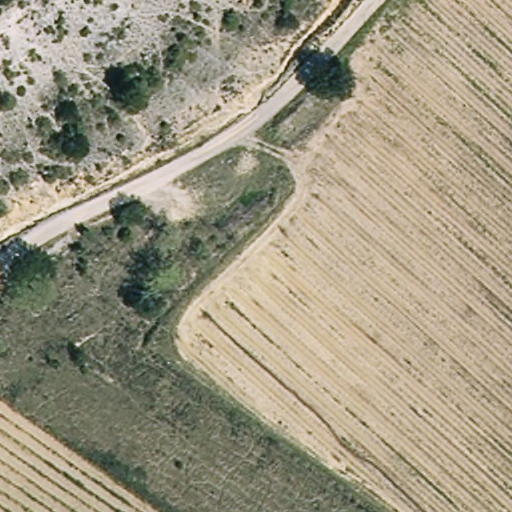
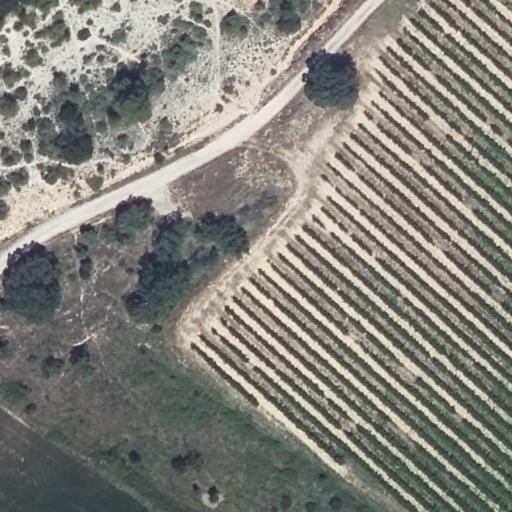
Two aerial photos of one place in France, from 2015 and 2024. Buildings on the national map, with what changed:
[]

